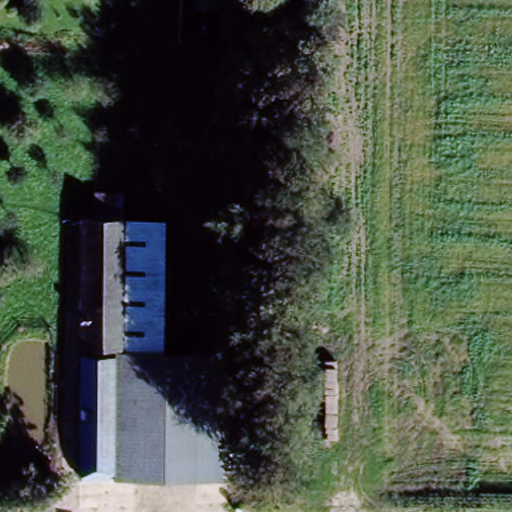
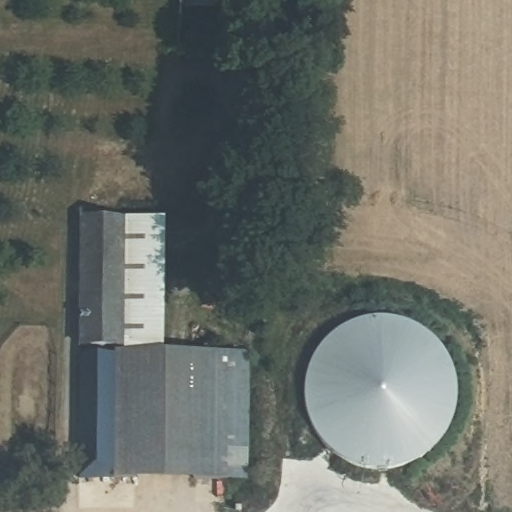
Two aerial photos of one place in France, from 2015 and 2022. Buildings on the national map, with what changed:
unchanged [(123,189),(123,214),(163,214),(162,349),(249,350),(248,476),(113,475),(95,474),(78,474),(80,345),(78,345),(79,214),(93,214),(93,189),(123,189)]
new [(314,353),(334,332),(358,320),(387,316),(413,323),(432,335),(448,356),(456,374),(459,400),(453,423),(443,438),(424,455),(402,465),(380,470),(359,466),(338,457),(321,440),(311,425),(306,410),(303,391),(306,373),(314,353)]

